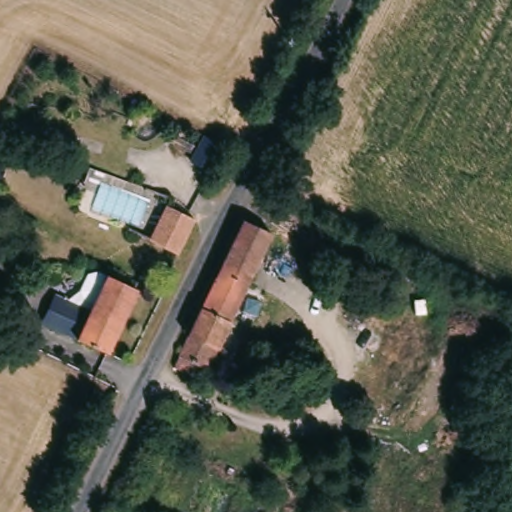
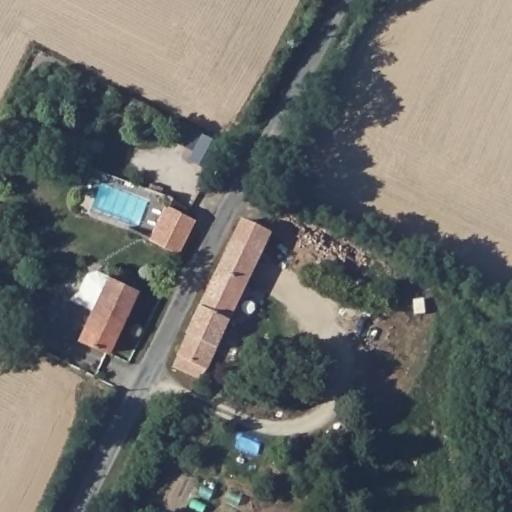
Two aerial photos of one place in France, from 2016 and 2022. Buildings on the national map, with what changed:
unchanged [(130,230),(150,186),(175,198),(170,206),(194,217),(178,251),(130,230)]
unchanged [(200,388),(194,385),(192,388),(168,377),(215,278),(243,216),(271,229),(266,240),(200,388)]
unchanged [(108,358),(59,335),(73,308),(95,316),(111,282),(138,294),(108,358)]

